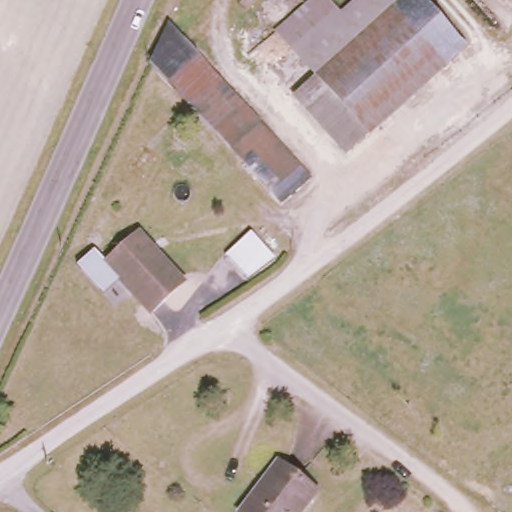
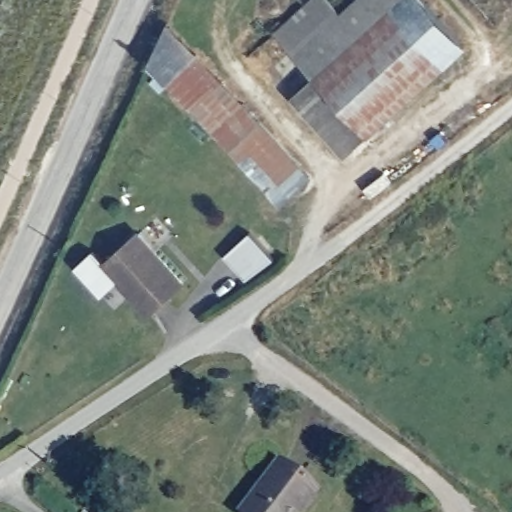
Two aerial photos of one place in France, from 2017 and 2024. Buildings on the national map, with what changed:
unchanged [(297,0),(331,0),(340,9),(351,0),(368,0),(380,14),(311,68),(270,23),(297,0)]
unchanged [(433,75),(380,14),(368,0),(425,0),(468,45),(433,75)]
unchanged [(311,68),(380,14),(433,75),(424,83),(366,133),(311,68)]
unchanged [(251,118),(222,142),(166,78),(196,54),(251,118)]
unchanged [(281,96),(311,68),(366,133),(335,160),(281,96)]
unchanged [(251,118),(305,179),(275,204),(222,142),(251,118)]
unchanged [(102,262),(140,229),(187,281),(150,315),(102,262)]
unchanged [(315,488),(295,512),(240,512),(280,463),(315,488)]

